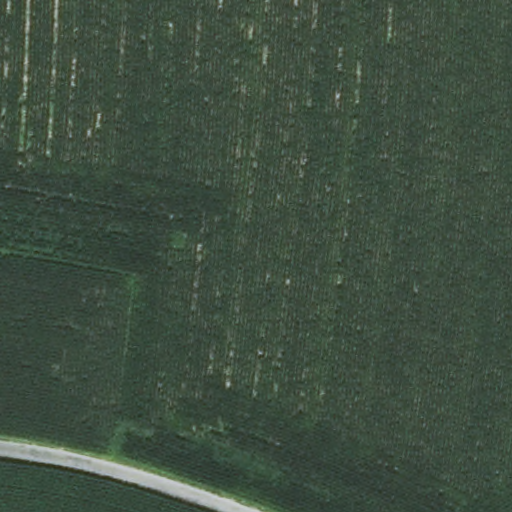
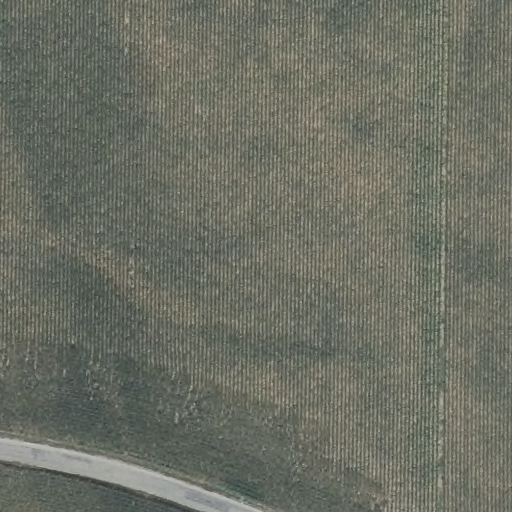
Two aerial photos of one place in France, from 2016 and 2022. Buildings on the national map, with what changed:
[]

